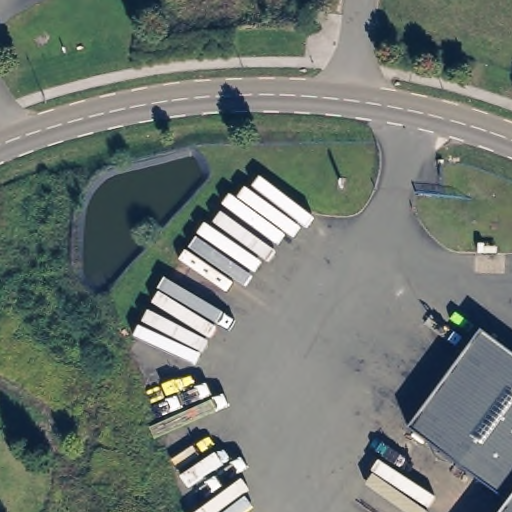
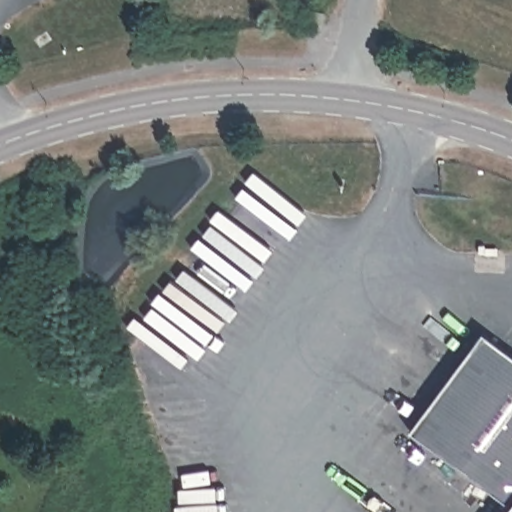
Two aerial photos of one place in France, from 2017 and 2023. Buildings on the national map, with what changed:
unchanged [(324,13),(323,24),(310,23),(312,12),(324,13)]
unchanged [(408,425),(482,326),(512,348),(512,512),(499,512),(509,499),(408,425)]

